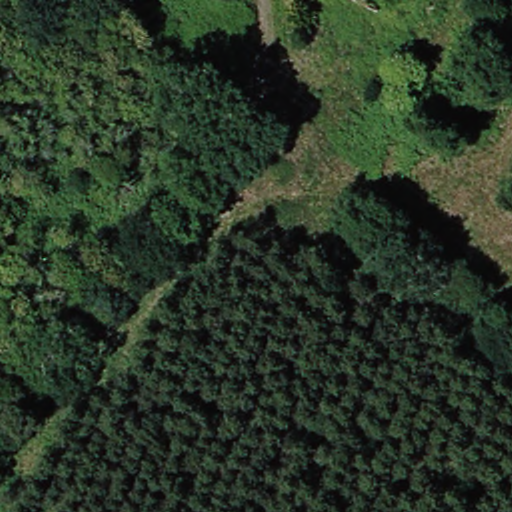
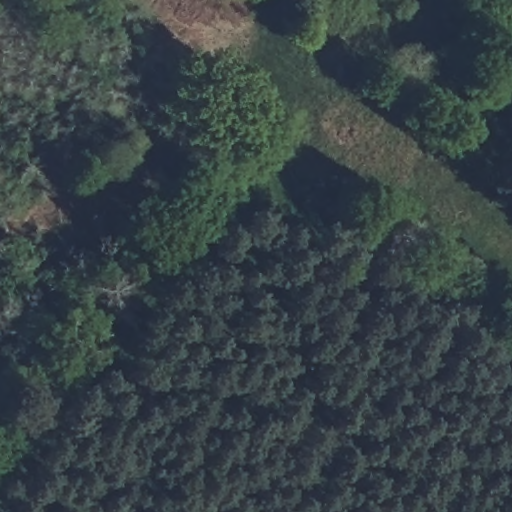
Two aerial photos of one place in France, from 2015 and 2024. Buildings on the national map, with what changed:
unchanged [(370,50),(360,43),(365,32),(377,39),(370,50)]

